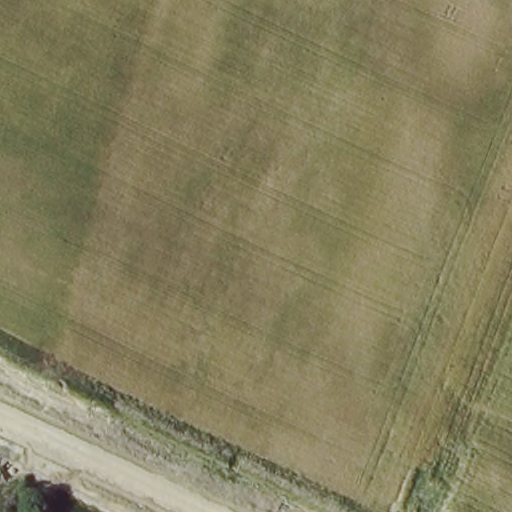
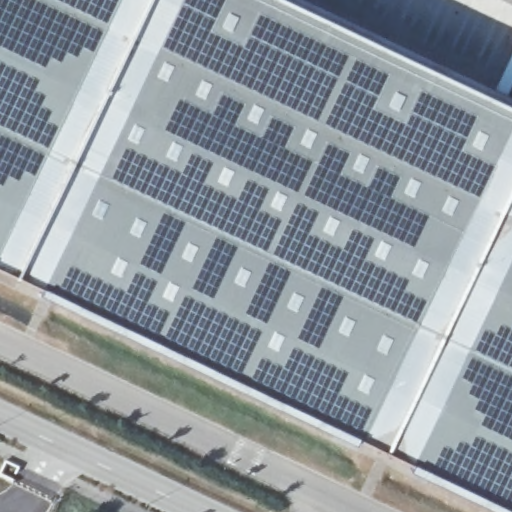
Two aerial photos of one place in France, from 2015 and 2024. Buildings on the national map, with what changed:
new [(0,268),(0,0),(151,0),(16,276),(0,268)]
new [(298,0),(512,103),(512,510),(16,276),(151,0),(298,0)]

